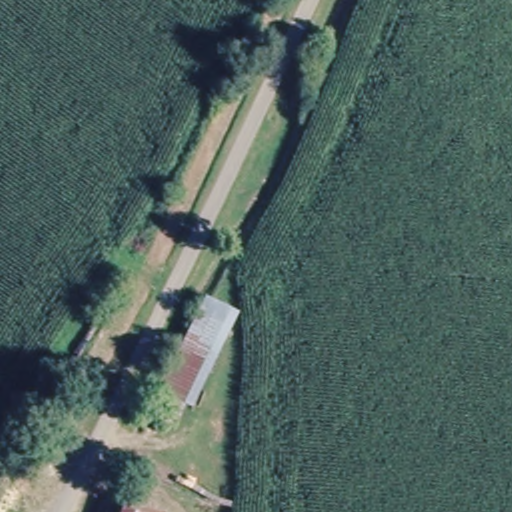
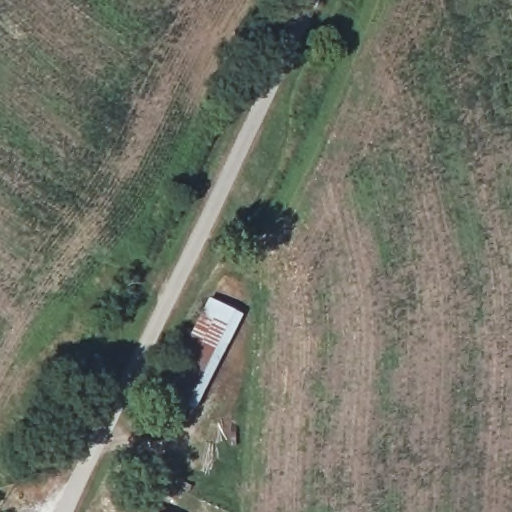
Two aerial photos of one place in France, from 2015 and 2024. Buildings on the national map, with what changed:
unchanged [(205,360),(179,347),(204,296),(241,313),(195,410),(184,405),(205,360)]
unchanged [(155,408),(179,347),(205,360),(184,405),(181,414),(155,408)]
unchanged [(160,512),(109,512),(117,494),(160,512)]

